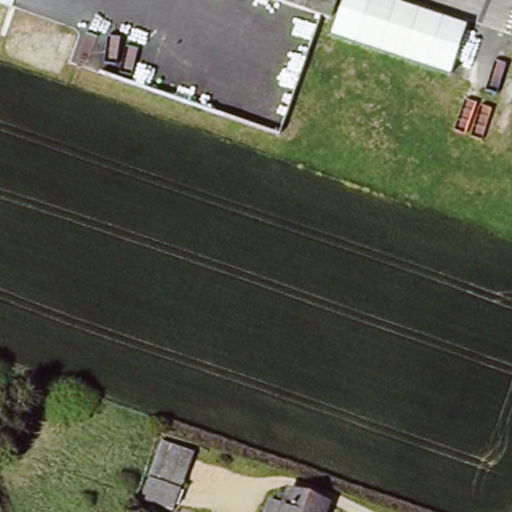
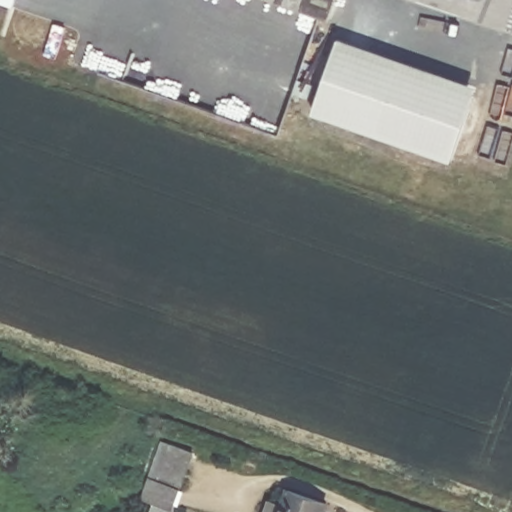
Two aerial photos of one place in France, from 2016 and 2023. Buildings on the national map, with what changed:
unchanged [(276,0),(335,0),(330,19),(276,0)]
unchanged [(449,74),(330,35),(342,0),(390,0),(465,25),(449,74)]
new [(480,87),(455,166),(314,112),(336,38),(480,87)]
unchanged [(184,465),(170,508),(139,498),(152,455),(184,465)]
unchanged [(332,505),(329,512),(275,512),(284,486),(332,505)]

